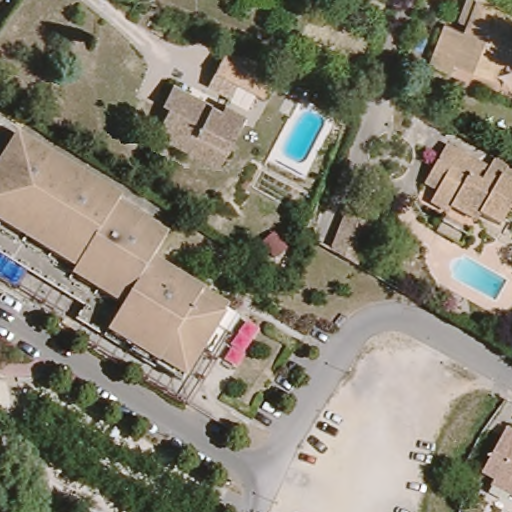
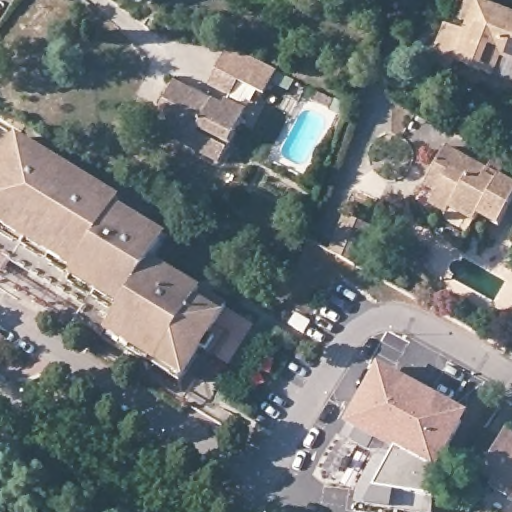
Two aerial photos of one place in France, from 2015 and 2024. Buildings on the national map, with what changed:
unchanged [(499,54),(491,74),(454,59),(450,68),(430,58),(445,19),(467,26),(476,0),(482,0),(512,12),(512,60),(499,54)]
unchanged [(275,71),(260,98),(212,79),(224,51),(275,71)]
unchanged [(165,120),(174,101),(164,96),(174,77),(224,101),(226,96),(245,106),(219,159),(194,147),(160,131),(165,120)]
unchanged [(153,264),(232,311),(187,387),(81,327),(90,310),(0,256),(0,134),(172,232),(153,264)]
unchanged [(482,220),(477,229),(452,215),(448,222),(431,211),(440,197),(427,187),(440,164),(450,148),(492,173),(505,181),(512,185),(512,212),(502,232),(482,220)]
unchanged [(350,210),(377,224),(360,267),(332,246),(350,210)]
new [(455,408),(467,415),(462,423),(437,471),(435,499),(375,490),(395,450),(349,424),(348,424),(375,375),(380,367),(415,386),(454,407),(455,408)]
new [(349,424),(395,450),(375,490),(435,499),(434,512),(411,512),(356,504),(358,490),(377,456),(342,436),(349,424)]
unchanged [(497,487),(499,483),(487,476),(510,431),(512,431),(512,495),(497,487)]

